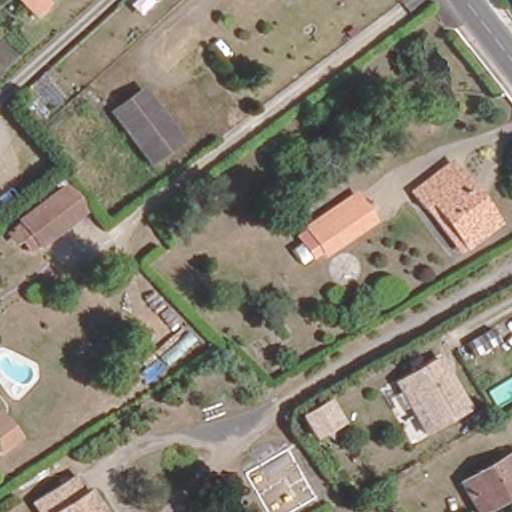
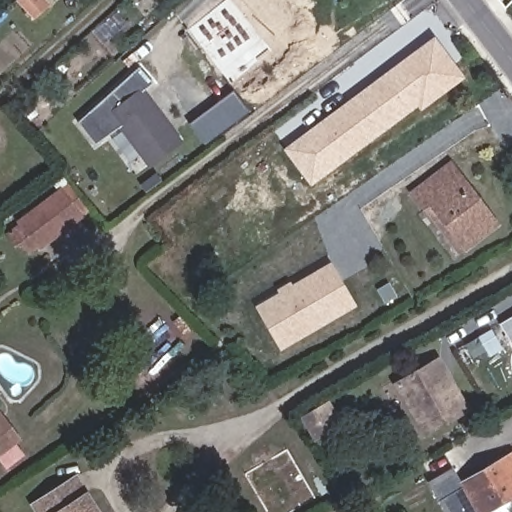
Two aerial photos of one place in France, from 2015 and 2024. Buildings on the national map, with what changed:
unchanged [(35,16),(20,0),(51,0),(52,1),(35,16)]
demolished [(122,3),(126,0),(155,0),(159,5),(139,21),(122,3)]
new [(434,36),(466,78),(421,111),(418,109),(311,186),(283,149),(434,36)]
new [(137,68),(151,83),(141,90),(111,111),(121,125),(95,144),(78,121),(137,68)]
unchanged [(141,90),(179,141),(149,163),(121,125),(111,111),(141,90)]
new [(234,91),(249,111),(204,144),(189,124),(234,91)]
unchanged [(425,208),(412,193),(451,163),(496,224),(464,248),(458,253),(425,208)]
unchanged [(1,176),(0,177),(0,175),(1,176)]
unchanged [(3,235),(10,229),(60,192),(66,187),(86,214),(80,218),(29,255),(21,244),(15,249),(3,235)]
unchanged [(306,227),(355,193),(372,221),(325,254),(311,263),(292,236),(306,227)]
new [(330,261),(357,306),(280,351),(255,306),(330,261)]
unchanged [(469,409),(423,438),(408,410),(397,418),(388,401),(398,395),(391,385),(438,356),(469,409)]
unchanged [(312,447),(296,421),(327,401),(344,427),(312,447)]
unchanged [(24,441),(0,458),(0,409),(24,441)]
unchanged [(460,483),(512,452),(512,495),(484,512),(477,512),(460,483)]
unchanged [(51,512),(40,494),(81,467),(109,512),(51,512)]

